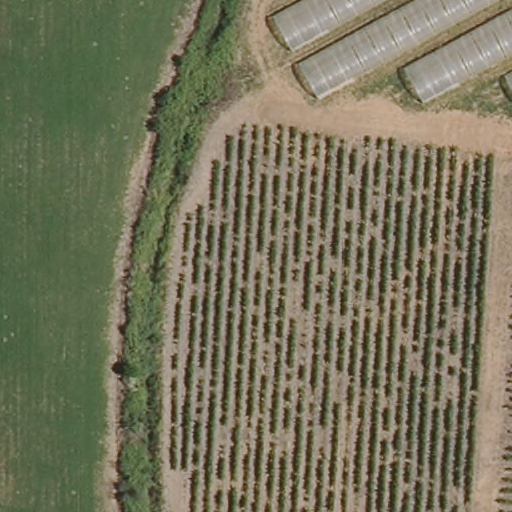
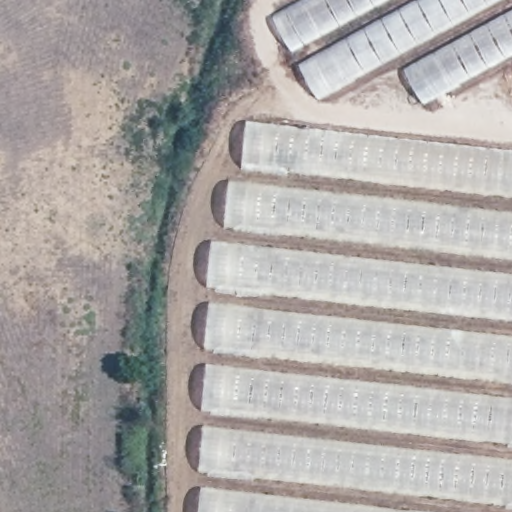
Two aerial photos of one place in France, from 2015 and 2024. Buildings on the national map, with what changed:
new [(492,63),(418,105),(395,54),(313,102),(271,18),(301,0),(512,0),(512,99),(492,63)]
new [(221,245),(228,183),(239,183),(245,123),(512,153),(512,512),(194,512),(210,244),(221,245)]

